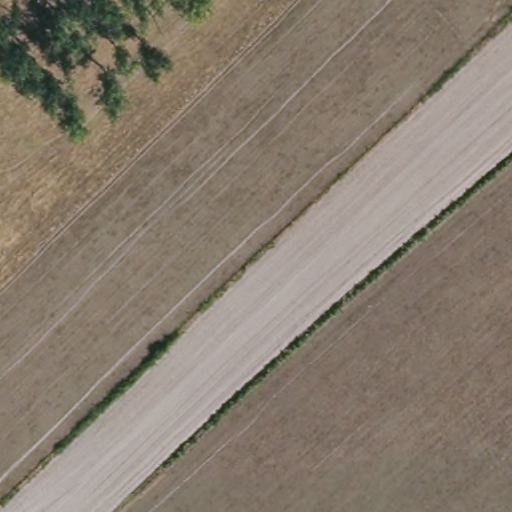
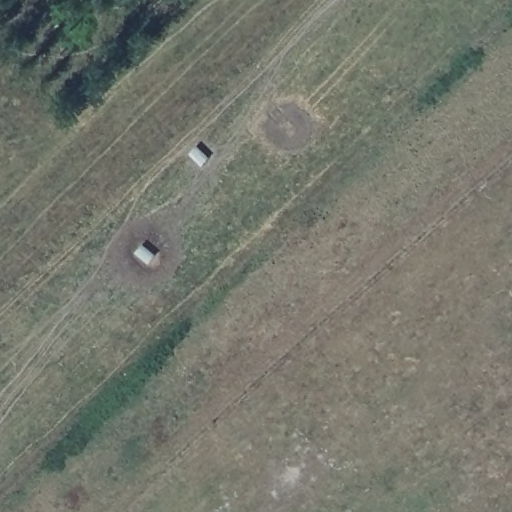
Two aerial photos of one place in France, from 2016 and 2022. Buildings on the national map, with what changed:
[]

